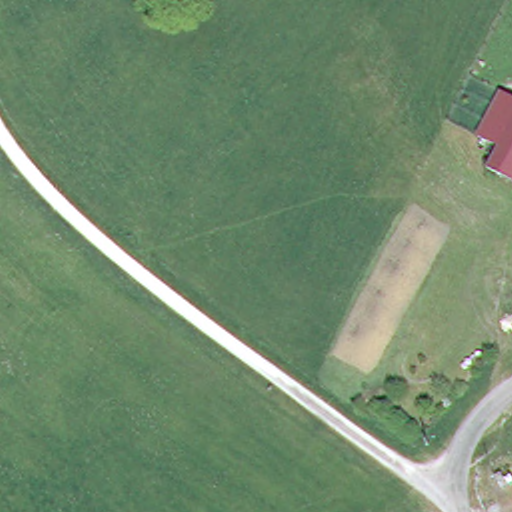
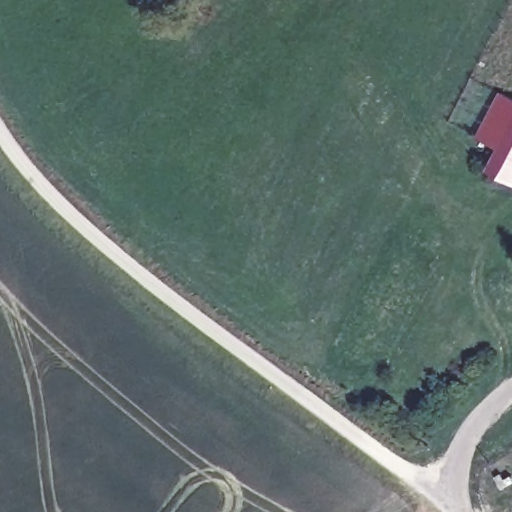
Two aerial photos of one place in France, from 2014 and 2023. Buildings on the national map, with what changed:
unchanged [(512,181),(489,167),(498,147),(475,132),(503,85),(512,91),(512,181)]

